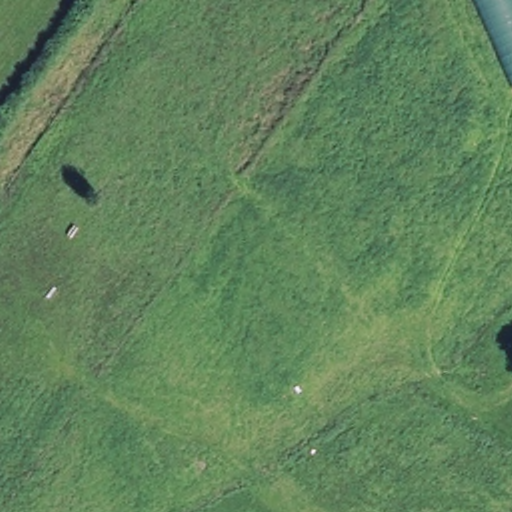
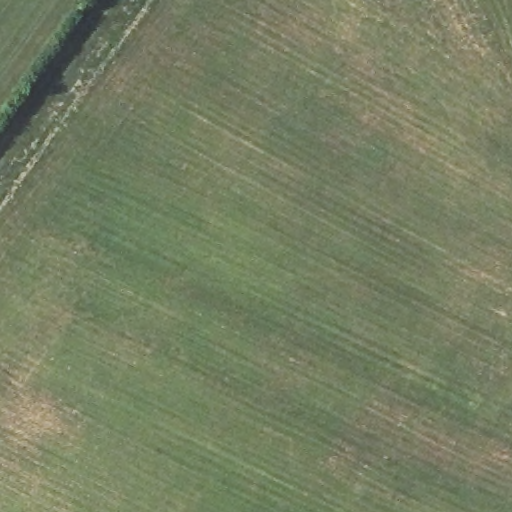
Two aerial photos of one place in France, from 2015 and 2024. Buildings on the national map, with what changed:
demolished [(512,0),(512,84),(475,0),(512,0)]

